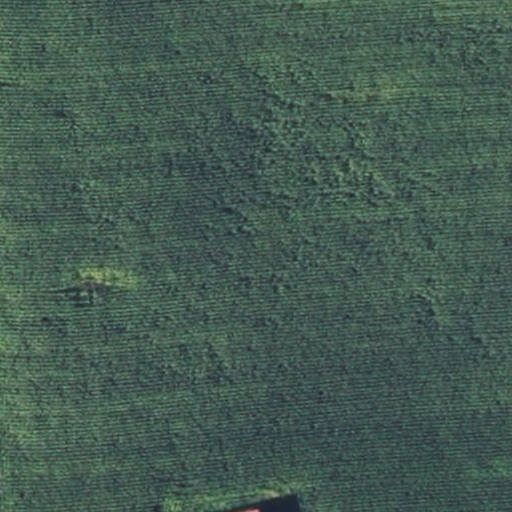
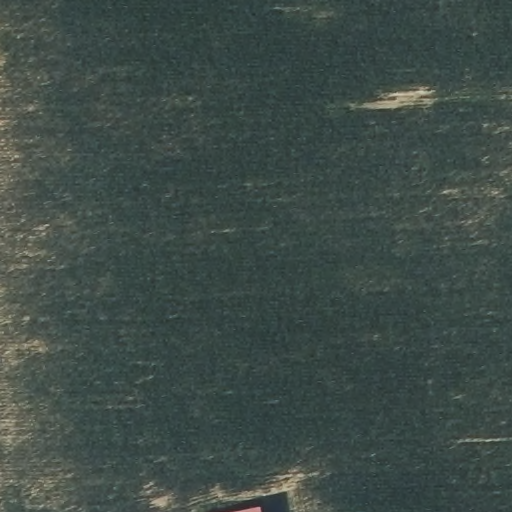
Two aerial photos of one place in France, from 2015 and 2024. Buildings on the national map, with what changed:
unchanged [(263,512),(219,512),(261,503),(263,512)]

